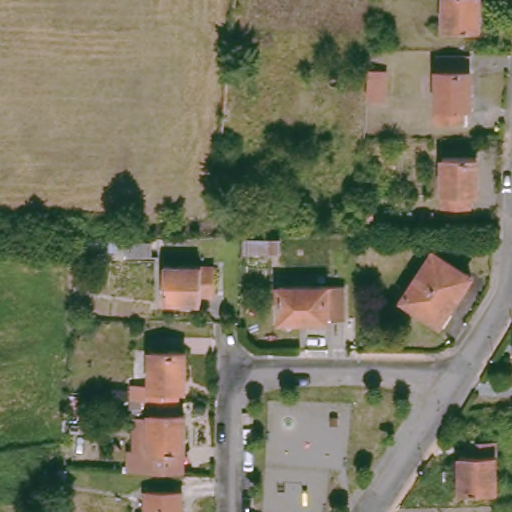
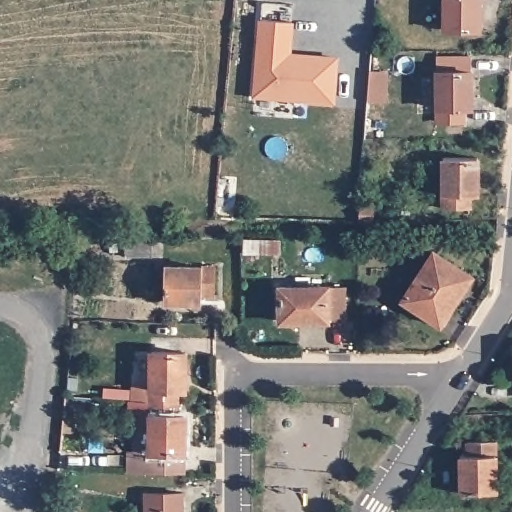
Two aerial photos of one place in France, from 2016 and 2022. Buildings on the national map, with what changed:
unchanged [(442,34),(442,0),(478,0),(478,34),(442,34)]
new [(264,4),(295,5),(294,22),(263,20),(264,4)]
new [(252,97),(258,19),(294,22),(292,52),(340,56),(335,104),(252,97)]
unchanged [(465,109),(457,109),(457,122),(430,122),(429,55),(465,55),(465,109)]
unchanged [(388,103),(364,101),(367,65),(390,69),(388,103)]
unchanged [(479,193),(471,193),(471,207),(443,207),(443,155),(478,155),(479,193)]
unchanged [(378,221),(364,221),(365,202),(379,203),(378,221)]
unchanged [(291,250),(247,248),(247,235),(292,237),(291,250)]
unchanged [(449,306),(450,307),(442,323),(400,298),(429,247),(470,272),(449,306)]
unchanged [(214,294),(201,294),(200,302),(163,301),(164,266),(215,266),(214,294)]
unchanged [(342,323),(327,323),(327,325),(279,326),(278,280),(342,280),(342,323)]
unchanged [(177,386),(177,398),(134,396),(133,396),(130,396),(130,381),(148,382),(150,359),(152,344),(177,346),(176,361),(185,362),(184,386),(177,386)]
unchanged [(180,467),(145,467),(145,472),(141,471),(132,471),(124,470),(125,450),(145,451),(147,413),(132,412),(133,396),(134,396),(177,398),(175,412),(182,413),(180,467)]
unchanged [(497,494),(462,495),(461,457),(470,457),(469,442),(495,442),(497,494)]
unchanged [(185,512),(147,512),(147,491),(185,490),(185,512)]

